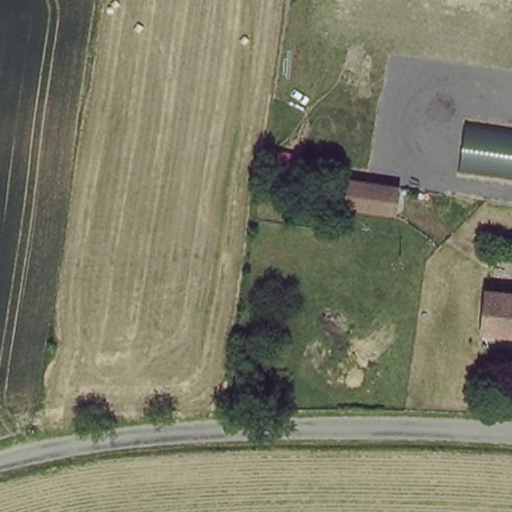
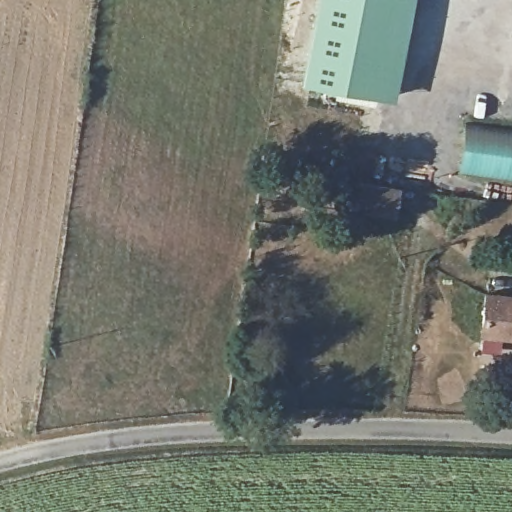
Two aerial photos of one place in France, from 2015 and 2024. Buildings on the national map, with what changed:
new [(315,0),(414,0),(403,58),(393,101),(300,83),(315,0)]
new [(465,125),(512,133),(512,178),(458,170),(465,125)]
unchanged [(397,209),(345,203),(349,181),(400,186),(397,209)]
unchanged [(512,335),(482,332),(487,295),(512,298),(512,335)]

